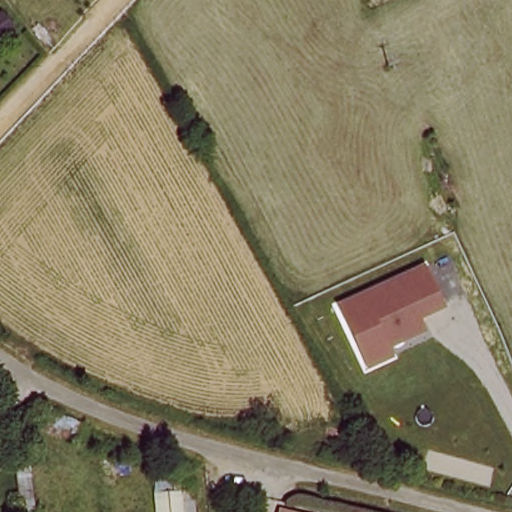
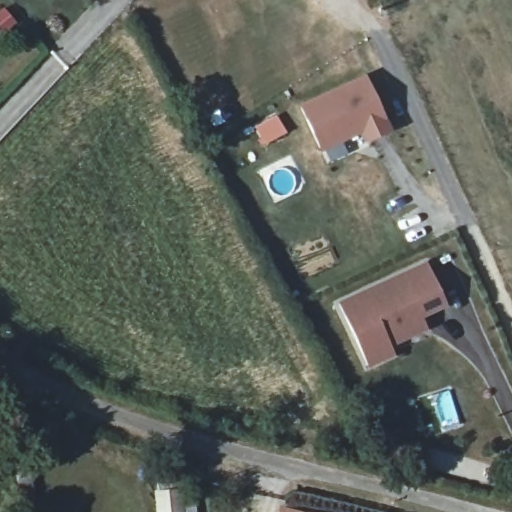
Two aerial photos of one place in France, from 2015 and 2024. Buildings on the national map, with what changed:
new [(365,75),(392,131),(367,145),(362,133),(322,153),(298,106),(365,75)]
unchanged [(416,316),(421,327),(384,342),(387,353),(363,365),(338,302),(423,261),(441,305),(416,316)]
unchanged [(193,512),(157,512),(156,491),(191,488),(193,512)]

